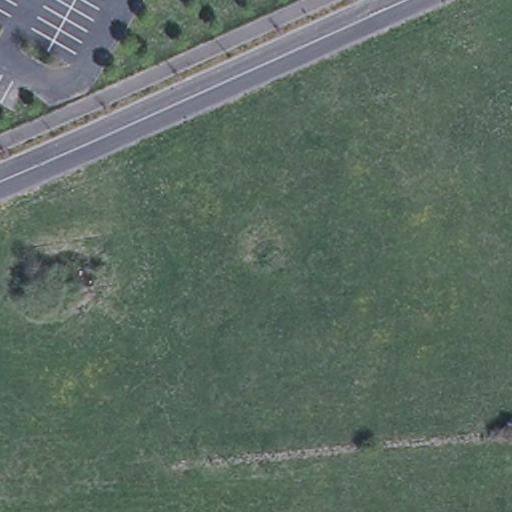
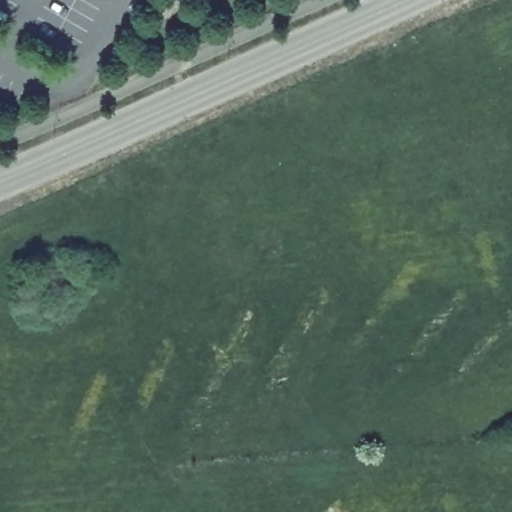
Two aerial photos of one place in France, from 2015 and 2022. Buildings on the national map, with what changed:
[]

